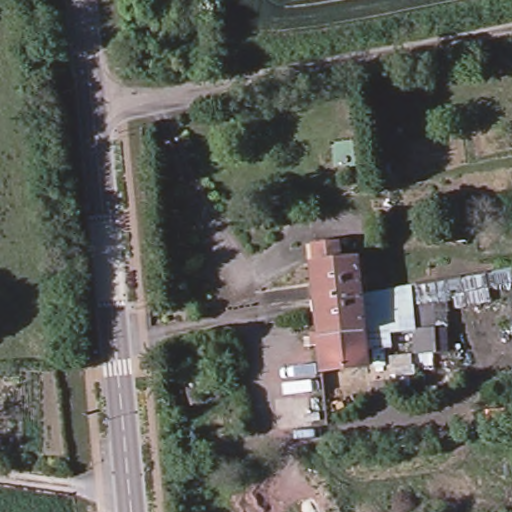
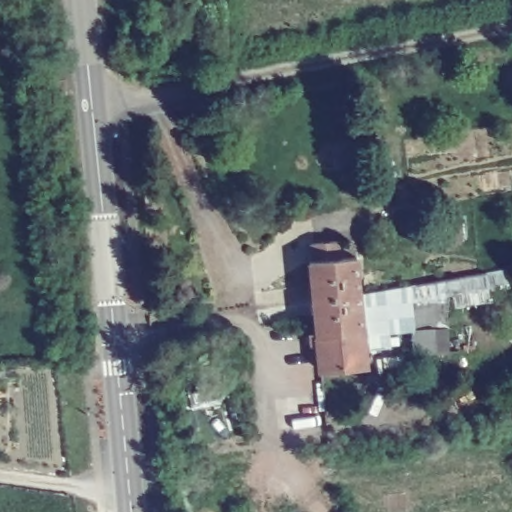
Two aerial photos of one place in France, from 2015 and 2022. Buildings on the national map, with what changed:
unchanged [(315,334),(312,299),(309,266),(355,262),(357,292),(358,294),(361,326),(315,334)]
unchanged [(424,333),(422,304),(443,303),(446,331),(461,331),(462,355),(448,356),(425,358),(424,333)]
unchanged [(365,369),(348,371),(348,379),(325,381),(324,374),(319,374),(315,334),(361,326),(365,369)]
unchanged [(365,397),(367,412),(345,414),(343,399),(365,397)]

